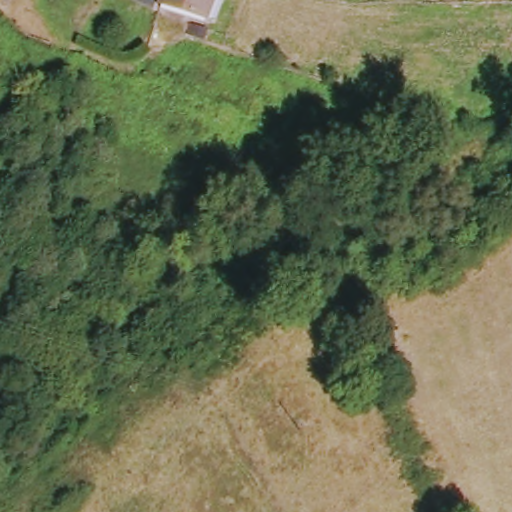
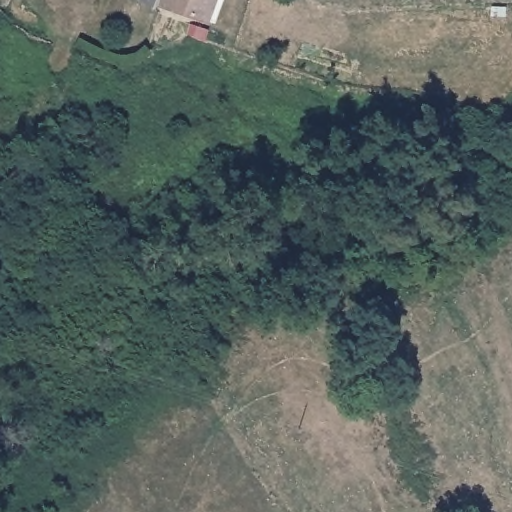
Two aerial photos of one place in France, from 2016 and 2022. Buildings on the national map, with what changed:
unchanged [(201,21),(155,8),(157,0),(208,0),(201,21)]

